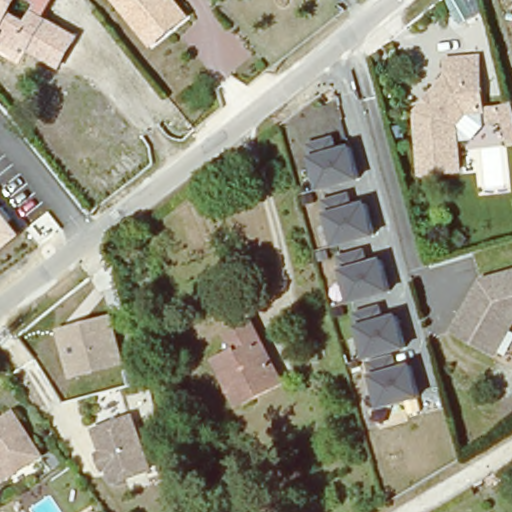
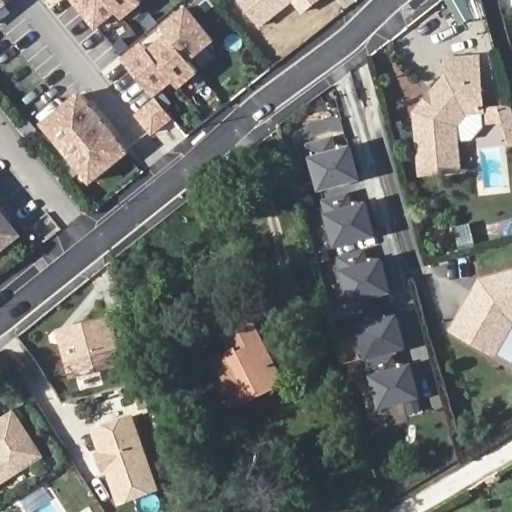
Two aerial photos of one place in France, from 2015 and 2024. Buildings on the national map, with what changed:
new [(6,0),(9,4),(0,11),(0,0),(6,0)]
demolished [(8,0),(2,10),(20,20),(25,11),(37,18),(70,37),(55,66),(18,46),(0,35),(0,0),(8,0)]
demolished [(29,0),(30,0),(30,1),(29,0)]
new [(124,20),(117,12),(96,29),(73,0),(140,0),(143,4),(124,20)]
demolished [(167,0),(180,16),(146,44),(110,0),(167,0)]
new [(292,3),(260,29),(237,0),(321,0),(302,16),(292,3)]
new [(216,40),(190,62),(199,73),(180,88),(175,81),(155,97),(139,77),(122,57),(142,42),(149,49),(167,34),(161,26),(187,5),(216,40)]
unchanged [(483,109),(468,111),(455,124),(456,142),(459,169),(422,173),(415,114),(448,75),(447,75),(446,59),(478,56),(483,109)]
new [(130,152),(90,185),(40,123),(80,91),(130,152)]
unchanged [(468,111),(483,109),(512,102),(512,145),(507,147),(500,122),(485,126),(472,140),(456,142),(455,124),(468,111)]
unchanged [(364,180),(318,190),(307,144),(333,135),(336,147),(355,144),(364,180)]
unchanged [(379,236),(337,248),(328,215),(369,203),(379,236)]
unchanged [(3,210),(6,207),(15,221),(15,224),(24,236),(0,254),(0,206),(3,210)]
unchanged [(395,293),(351,305),(341,271),(385,258),(395,293)]
unchanged [(485,353),(445,327),(462,298),(475,280),(512,270),(512,319),(505,321),(485,353)]
unchanged [(65,375),(52,327),(108,311),(122,362),(65,375)]
unchanged [(381,410),(359,324),(398,312),(407,348),(393,353),(400,368),(413,365),(422,398),(381,410)]
unchanged [(247,393),(232,402),(210,357),(229,346),(221,331),(244,318),(270,371),(273,377),(247,393)]
unchanged [(139,425),(130,394),(144,390),(151,416),(152,421),(139,425)]
unchanged [(15,416),(42,456),(10,477),(0,484),(0,425),(15,416)]
unchanged [(95,458),(100,456),(91,432),(129,420),(146,471),(110,483),(105,467),(99,470),(95,458)]

